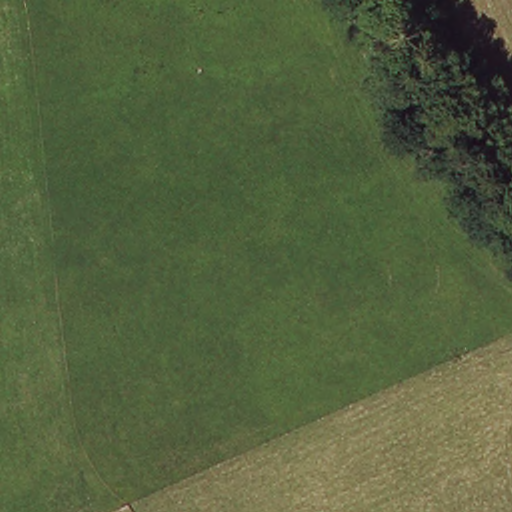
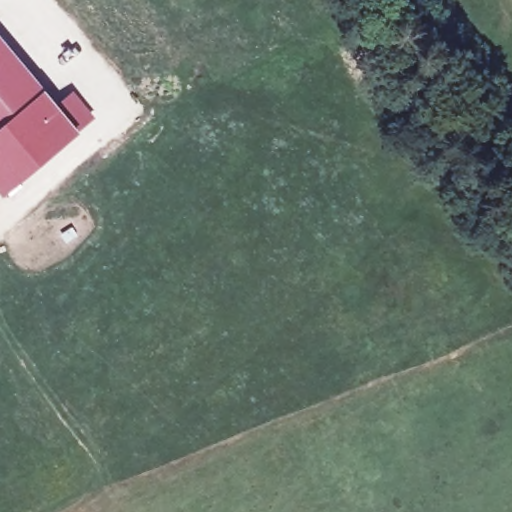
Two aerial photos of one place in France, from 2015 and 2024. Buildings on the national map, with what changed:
new [(83,130),(7,195),(0,187),(0,32),(48,89),(83,130)]

